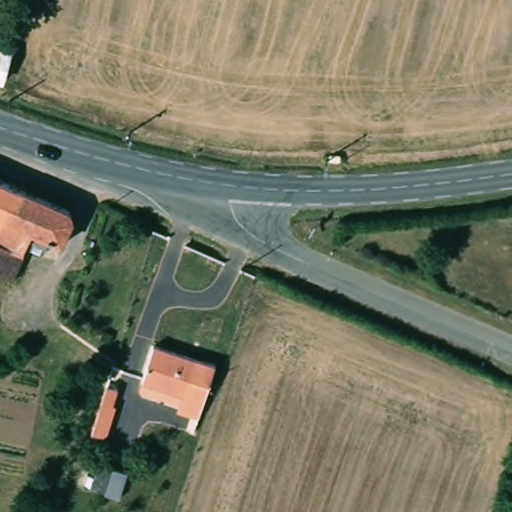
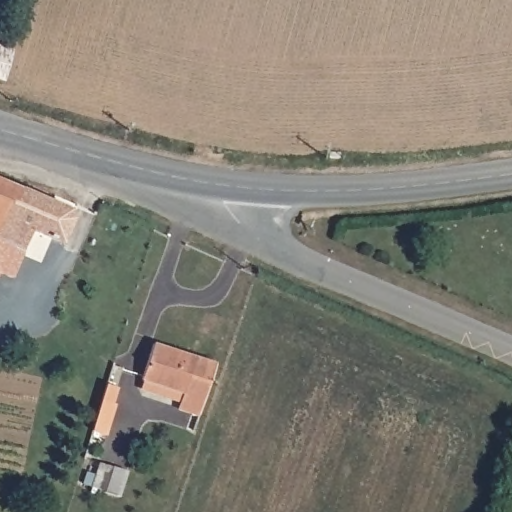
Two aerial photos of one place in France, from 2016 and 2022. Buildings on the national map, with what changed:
unchanged [(9,76),(0,73),(0,42),(16,46),(9,76)]
unchanged [(74,203),(76,213),(67,234),(55,229),(49,240),(32,234),(25,251),(15,270),(0,265),(0,173),(24,184),(74,203)]
unchanged [(148,380),(146,379),(159,343),(220,366),(213,387),(203,417),(182,410),(185,403),(145,388),(148,380)]
unchanged [(100,391),(104,382),(115,385),(109,401),(98,397),(100,391)]
unchanged [(103,462),(130,471),(122,496),(108,491),(109,490),(95,486),(103,462)]

